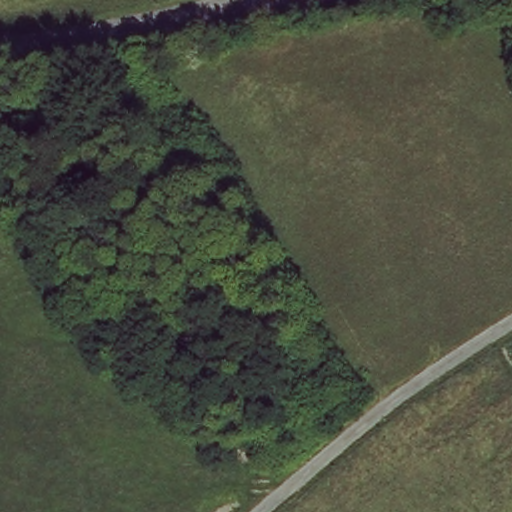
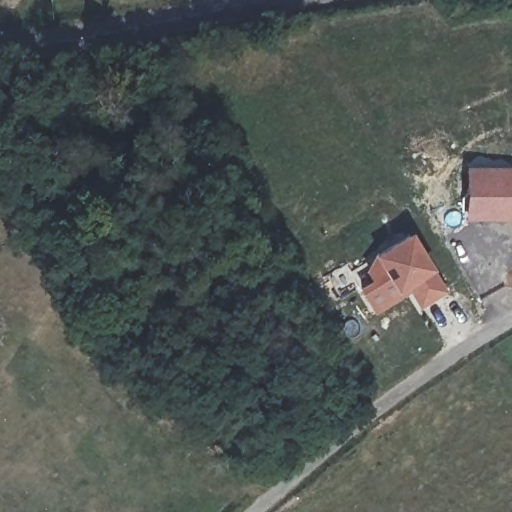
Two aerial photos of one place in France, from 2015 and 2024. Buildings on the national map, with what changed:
new [(464,219),(464,164),(512,165),(512,221),(511,219),(464,219)]
new [(418,307),(409,290),(373,314),(357,285),(371,278),(363,269),(374,252),(376,253),(408,232),(432,268),(445,290),(418,307)]

